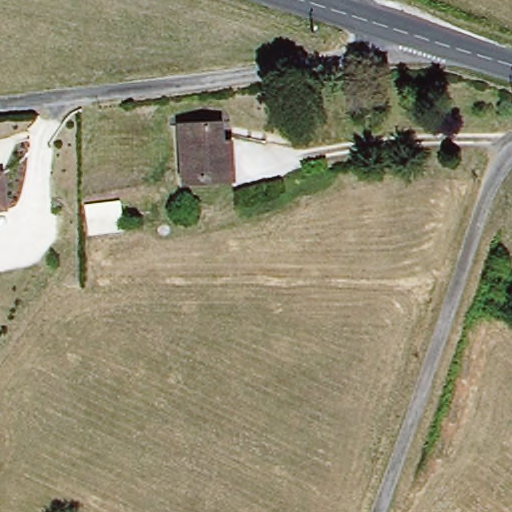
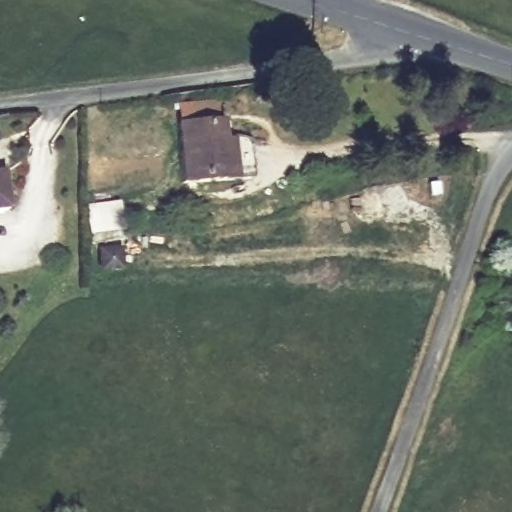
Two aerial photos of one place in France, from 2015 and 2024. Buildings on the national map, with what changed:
unchanged [(229,119),(230,134),(239,134),(242,176),(192,181),(187,123),(229,119)]

